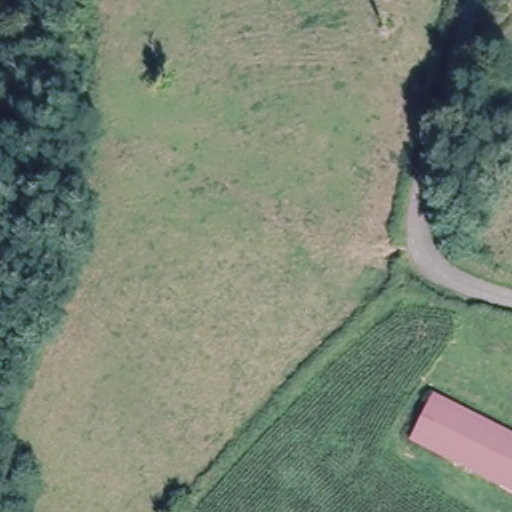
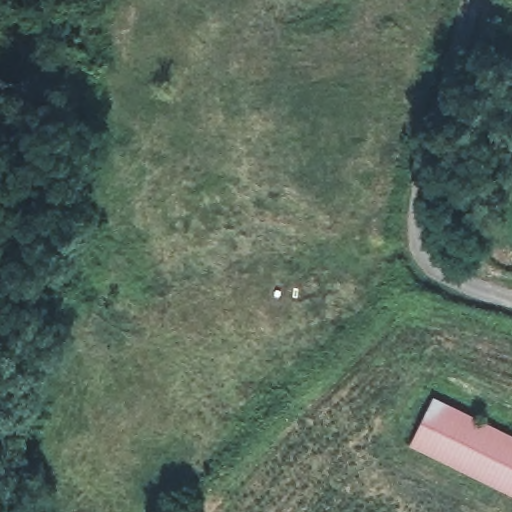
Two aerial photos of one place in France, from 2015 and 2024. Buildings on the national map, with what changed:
unchanged [(439,407),(512,440),(512,491),(421,449),(439,407)]

